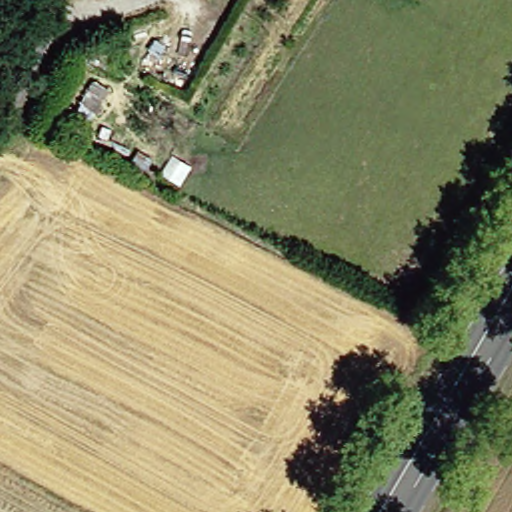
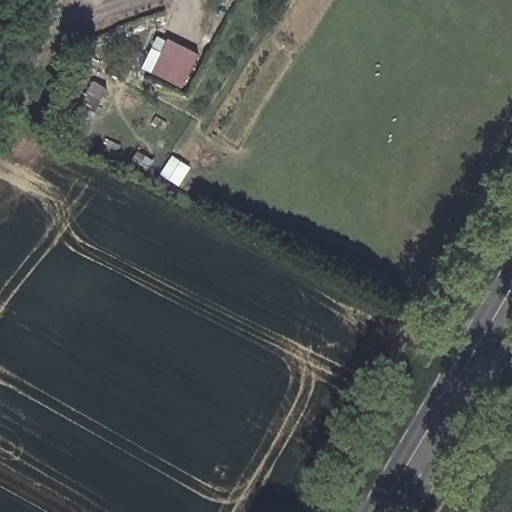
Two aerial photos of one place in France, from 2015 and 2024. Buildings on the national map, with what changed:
new [(157,37),(168,38),(200,56),(184,88),(142,68),(157,37)]
unchanged [(502,428),(512,412),(512,433),(502,428)]

